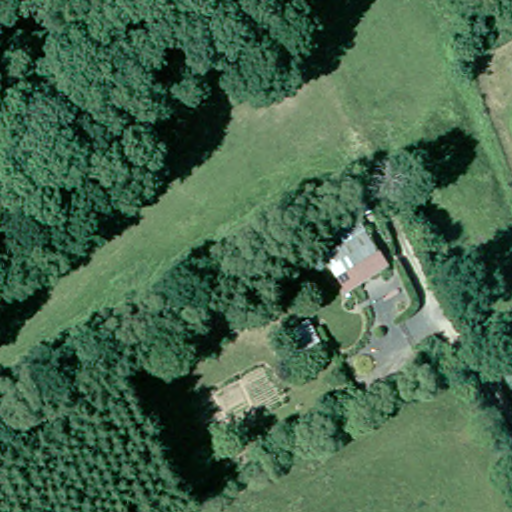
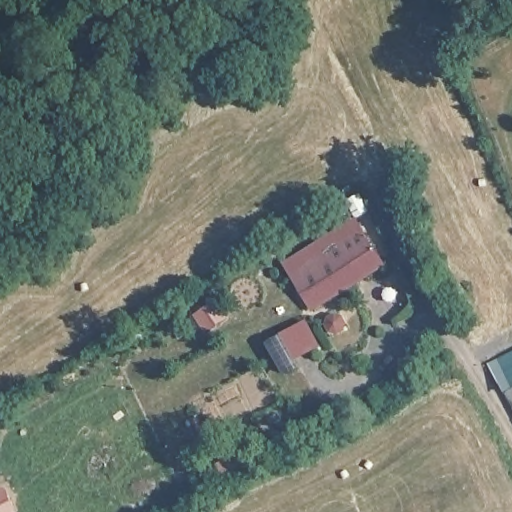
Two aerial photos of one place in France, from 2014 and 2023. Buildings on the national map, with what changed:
new [(312,310),(283,260),(357,216),(387,266),(312,310)]
new [(231,319),(205,334),(193,314),(217,299),(231,319)]
new [(322,346),(295,361),(281,332),(308,318),(322,346)]
new [(0,512),(0,489),(5,487),(18,512),(0,512)]

